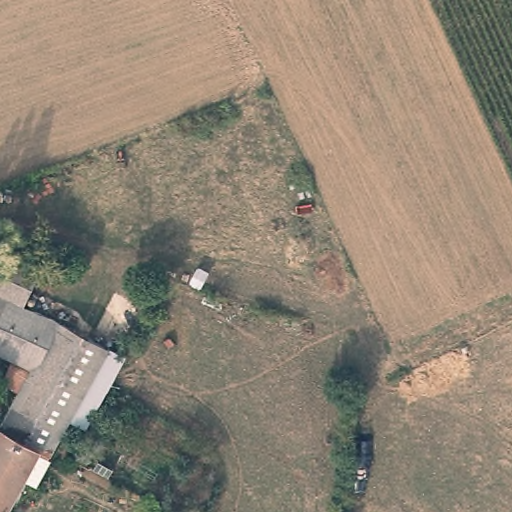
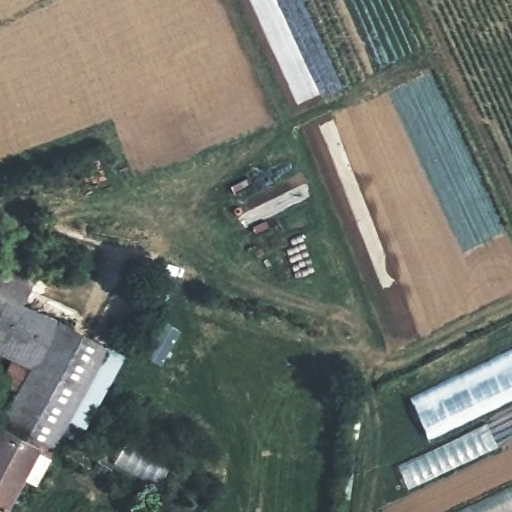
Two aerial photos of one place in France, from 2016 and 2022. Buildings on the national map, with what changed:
unchanged [(0,247),(40,266),(21,302),(0,292),(0,247)]
unchanged [(65,322),(108,347),(55,443),(49,451),(37,447),(2,512),(0,512),(0,425),(0,424),(24,381),(10,374),(19,357),(0,348),(0,292),(21,302),(65,322)]
new [(485,415),(501,447),(411,490),(398,465),(438,446),(411,397),(512,349),(512,402),(485,415)]

